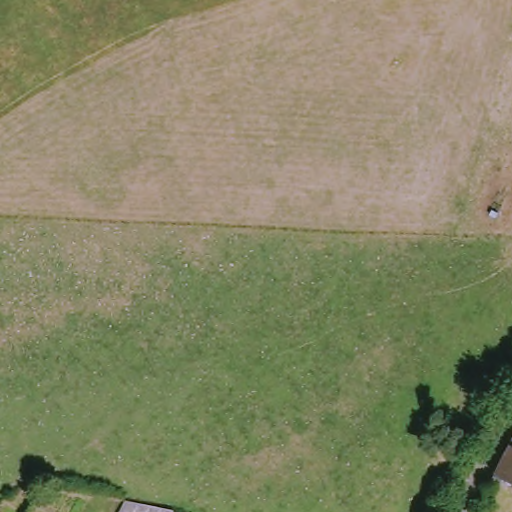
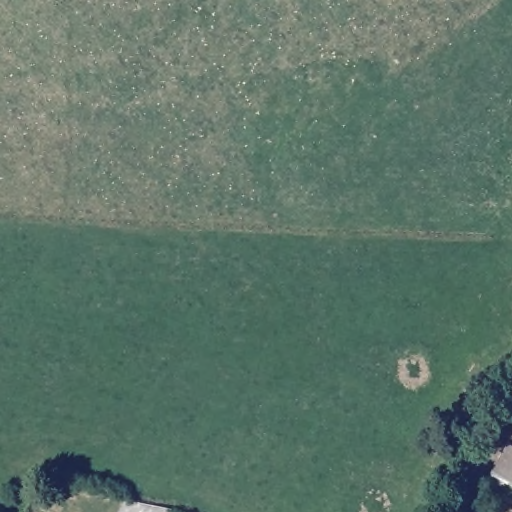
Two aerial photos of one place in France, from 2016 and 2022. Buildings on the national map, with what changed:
unchanged [(460,430),(466,419),(480,425),(475,436),(460,430)]
unchanged [(492,472),(512,428),(512,484),(492,472)]
unchanged [(122,502),(171,511),(173,512),(116,512),(122,502)]

